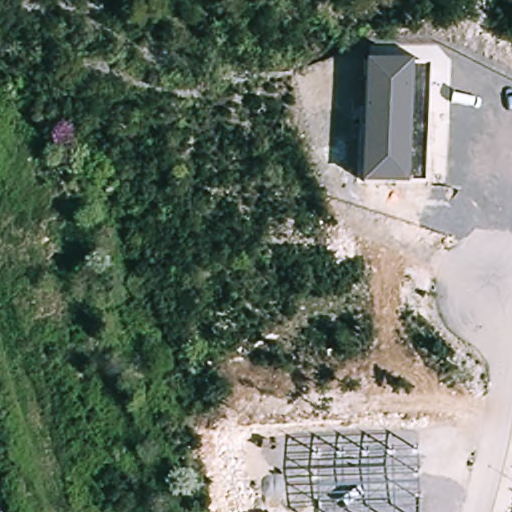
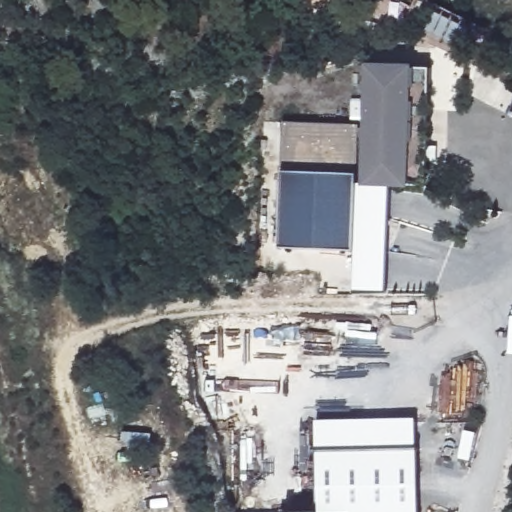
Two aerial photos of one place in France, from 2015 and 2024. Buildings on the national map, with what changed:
unchanged [(425,183),(409,184),(363,183),(369,62),(412,64),(413,71),(428,70),(425,183)]
new [(356,124),(351,251),(275,249),(281,121),(356,124)]
new [(390,186),(383,291),(352,291),(354,185),(390,186)]
new [(313,419),(398,417),(400,445),(315,445),(313,419)]
unchanged [(420,448),(419,512),(316,512),(316,450),(420,448)]

